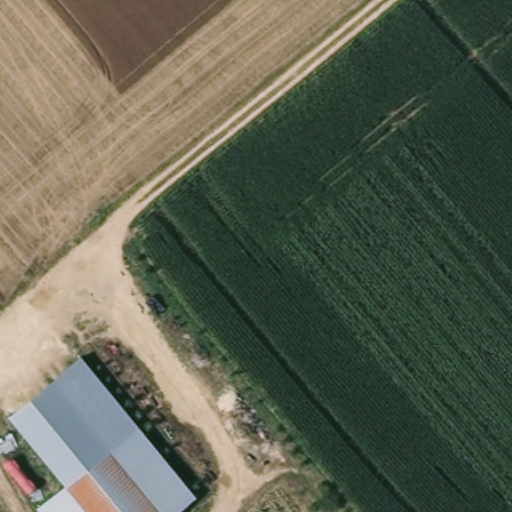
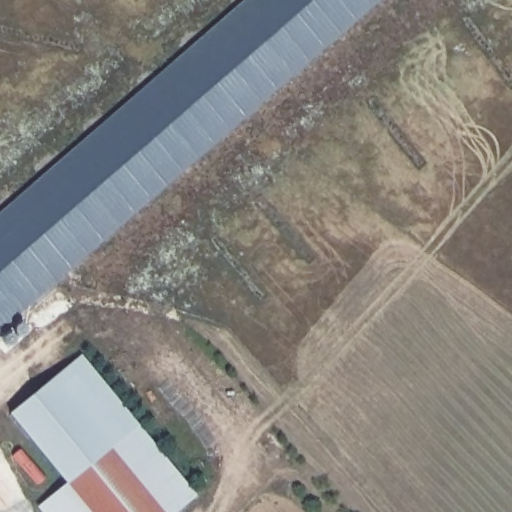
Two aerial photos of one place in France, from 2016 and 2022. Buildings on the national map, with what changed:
new [(0,213),(245,0),(381,0),(0,332),(0,213)]
unchanged [(83,359),(140,427),(69,485),(11,415),(83,359)]
unchanged [(172,466),(118,512),(47,512),(42,507),(69,485),(140,427),(172,466)]
unchanged [(180,512),(118,512),(172,466),(199,497),(180,512)]

